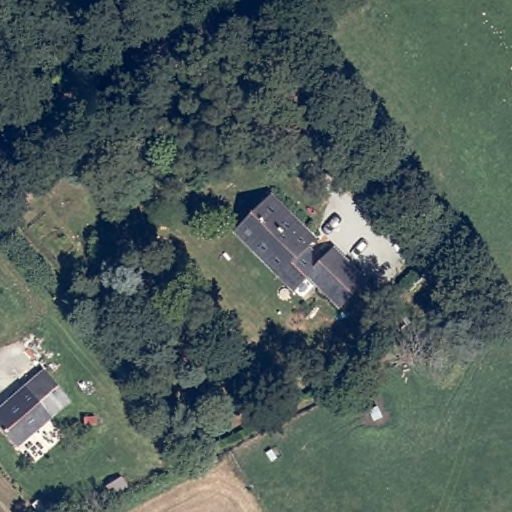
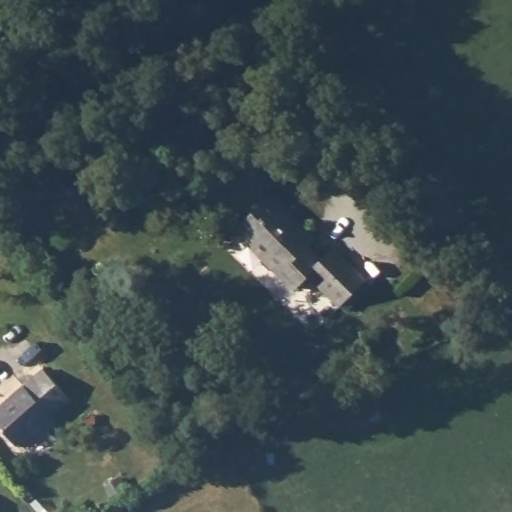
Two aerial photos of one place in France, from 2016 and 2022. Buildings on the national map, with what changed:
unchanged [(236,234),(267,206),(310,248),(300,258),(314,272),(328,259),(362,292),(334,318),(302,286),(290,296),(260,265),(263,262),(236,234)]
unchanged [(0,401),(45,364),(74,398),(21,443),(0,418),(0,401)]

